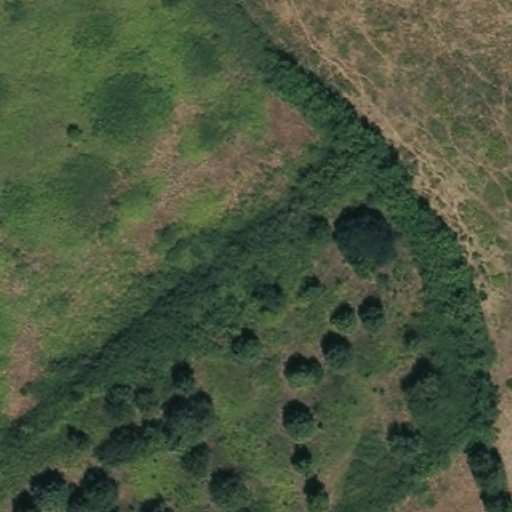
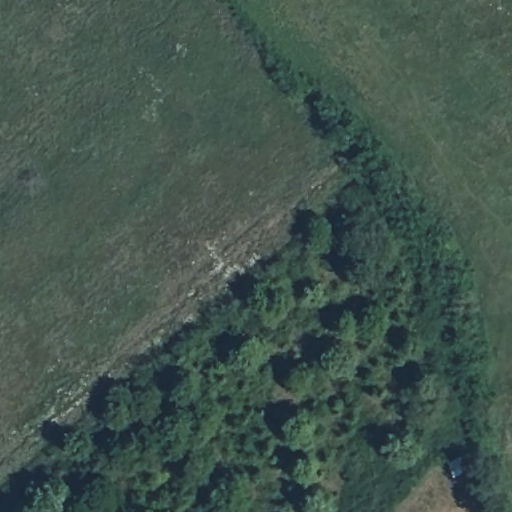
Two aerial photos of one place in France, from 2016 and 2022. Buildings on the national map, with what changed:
[]

